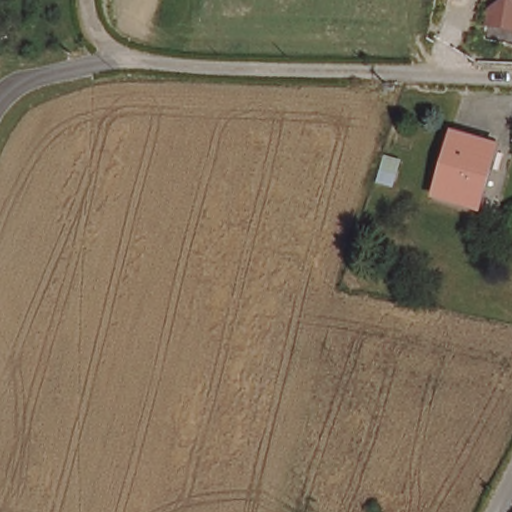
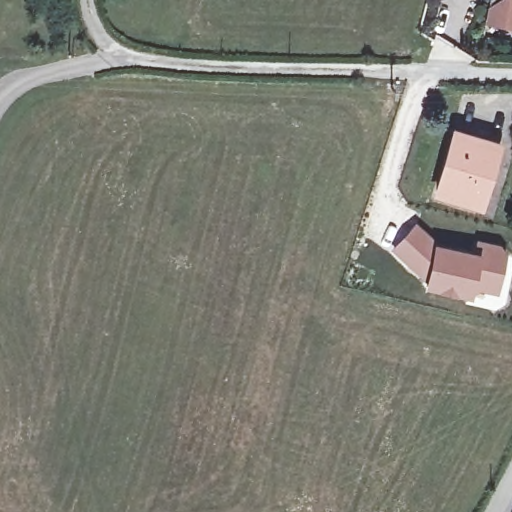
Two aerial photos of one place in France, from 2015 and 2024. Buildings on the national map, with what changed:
unchanged [(485,26),(487,7),(499,0),(512,0),(512,30),(485,26)]
unchanged [(450,129),(491,140),(489,147),(474,200),(432,187),(450,129)]
new [(473,286),(470,297),(425,287),(426,282),(390,250),(415,223),(435,245),(471,252),(476,240),(500,245),(506,253),(497,293),(473,286)]

